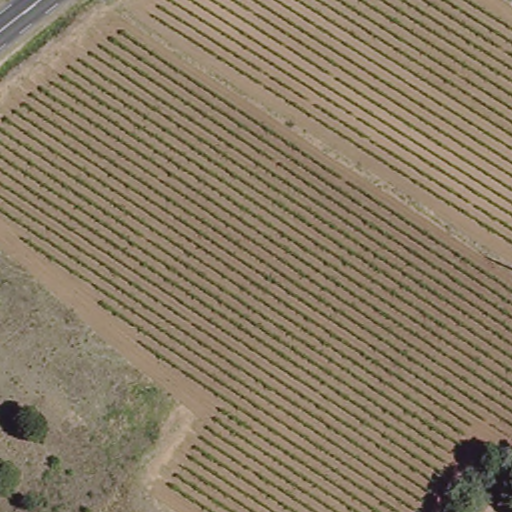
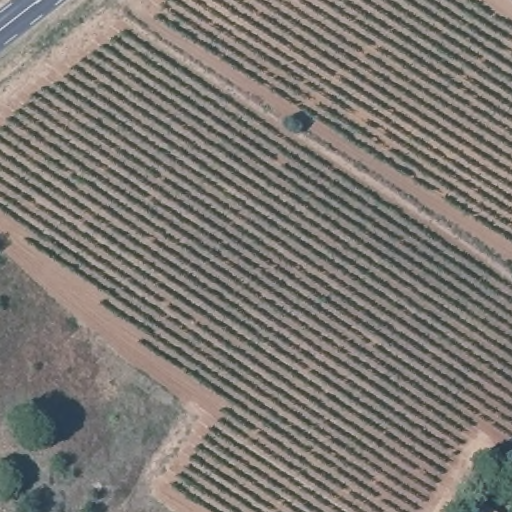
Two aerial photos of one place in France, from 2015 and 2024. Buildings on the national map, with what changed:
unchanged [(474,501),(491,512),(467,512),(474,501)]

